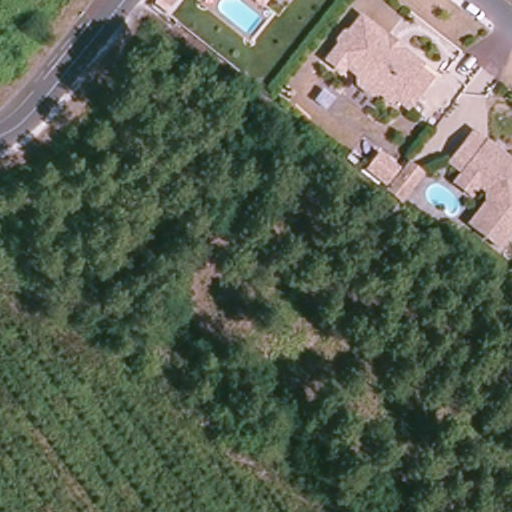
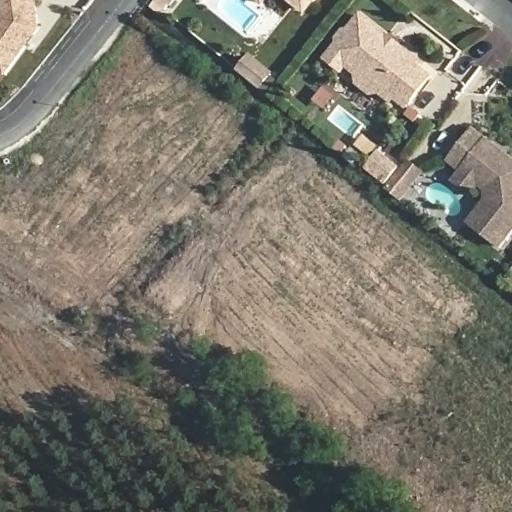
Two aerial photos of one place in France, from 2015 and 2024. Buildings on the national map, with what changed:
new [(41,29),(6,78),(0,74),(0,0),(37,0),(41,29)]
unchanged [(420,67),(430,75),(404,110),(394,104),(390,107),(321,60),(358,11),(421,60),(420,67)]
unchanged [(512,156),(512,231),(500,246),(467,219),(484,200),(483,190),(476,185),(468,195),(452,181),(457,172),(445,161),(472,128),(512,156)]
new [(385,182),(373,174),(365,167),(378,151),(385,157),(397,167),(385,182)]
unchanged [(399,201),(385,187),(408,159),(422,174),(399,201)]

